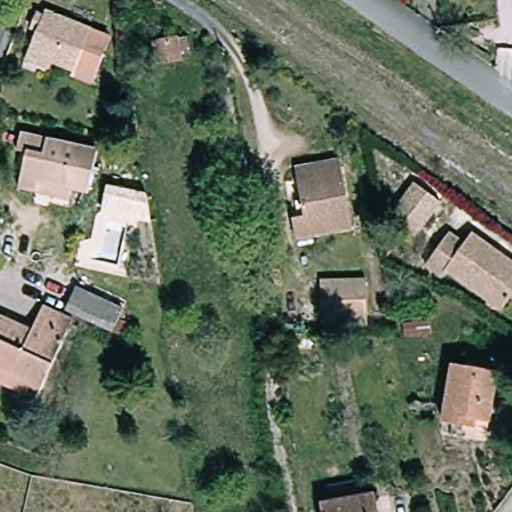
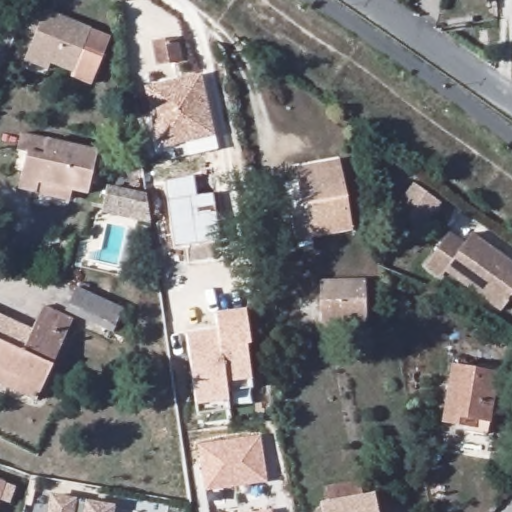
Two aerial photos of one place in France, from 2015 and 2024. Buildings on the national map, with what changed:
unchanged [(68,77),(71,71),(24,54),(39,13),(88,32),(107,39),(101,55),(90,85),(68,77)]
unchanged [(184,37),(186,50),(175,53),(175,59),(154,64),(150,41),(184,37)]
new [(182,136),(155,142),(142,83),(153,81),(195,72),(207,123),(208,130),(182,136)]
unchanged [(30,192),(16,189),(24,155),(16,153),(21,135),(97,155),(86,198),(68,193),(66,202),(30,192)]
unchanged [(295,246),(295,229),(306,225),(298,191),(294,177),(339,166),(342,180),(354,232),(295,246)]
new [(193,175),(196,195),(212,193),(220,238),(175,245),(165,181),(193,175)]
unchanged [(103,182),(142,190),(146,215),(98,205),(103,182)]
unchanged [(412,185),(438,203),(411,241),(385,222),(412,185)]
unchanged [(497,310),(443,271),(439,278),(425,267),(446,234),(461,244),(467,235),(512,266),(512,303),(505,299),(497,310)]
unchanged [(365,284),(366,327),(318,331),(316,288),(365,284)]
unchanged [(126,312),(116,334),(68,314),(77,291),(126,312)]
new [(195,414),(193,404),(183,335),(215,330),(212,313),(242,309),(247,343),(243,344),(248,377),(250,387),(225,391),(225,399),(227,409),(195,414)]
unchanged [(36,335),(42,323),(46,313),(72,324),(70,334),(39,404),(0,387),(0,320),(36,335)]
unchanged [(495,376),(487,427),(463,422),(461,431),(441,427),(450,367),(495,376)]
new [(205,491),(197,444),(260,435),(267,481),(205,491)]
new [(0,497),(0,479),(5,481),(0,497)]
new [(50,494),(78,499),(77,503),(85,504),(85,500),(116,505),(115,512),(47,512),(50,494)]
unchanged [(376,499),(378,512),(327,512),(326,506),(376,499)]
new [(271,510),(271,512),(260,512),(271,510)]

